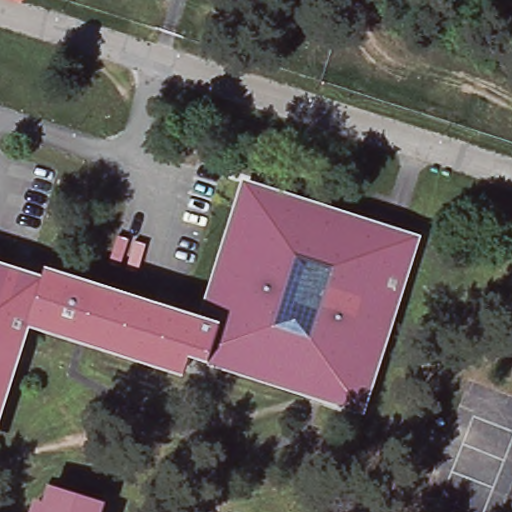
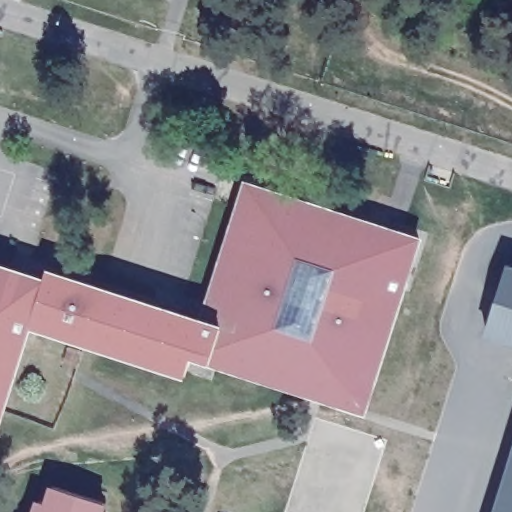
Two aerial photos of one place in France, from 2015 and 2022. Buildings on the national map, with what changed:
unchanged [(211,187),(227,192),(232,176),(264,186),(260,197),(272,201),(276,191),(391,227),(344,380),(334,376),(328,395),(162,342),(174,302),(211,187)]
unchanged [(48,263),(174,302),(162,342),(157,360),(30,321),(42,281),(48,263)]
new [(486,336),(508,266),(512,268),(512,346),(486,336)]
unchanged [(30,321),(0,419),(0,267),(42,281),(30,321)]
new [(493,512),(512,449),(512,512),(493,512)]
unchanged [(85,512),(31,512),(36,497),(85,512)]

